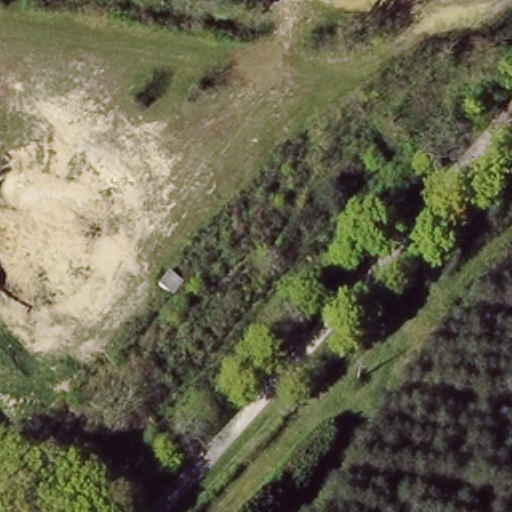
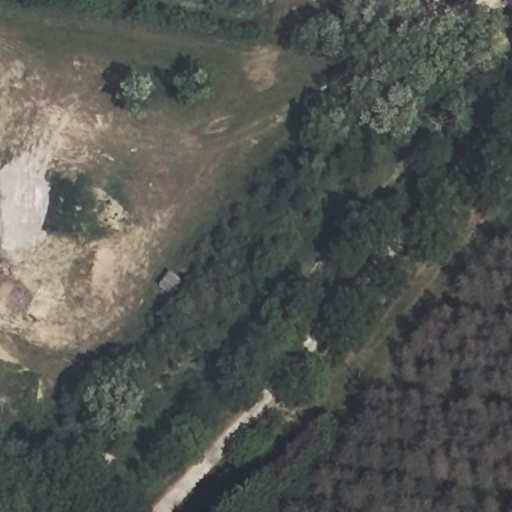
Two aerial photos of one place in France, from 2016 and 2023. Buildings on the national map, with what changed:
unchanged [(188,285),(176,272),(186,260),(201,272),(188,285)]

